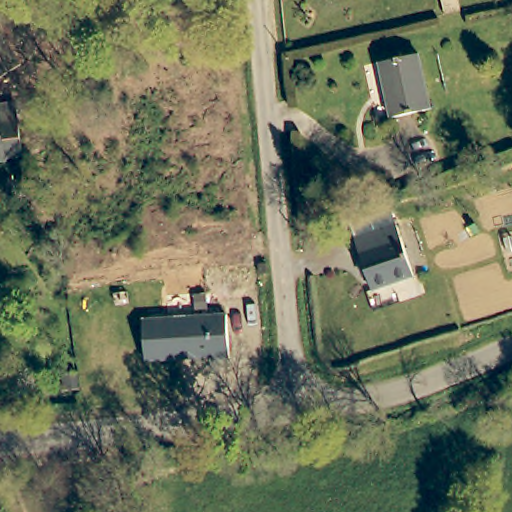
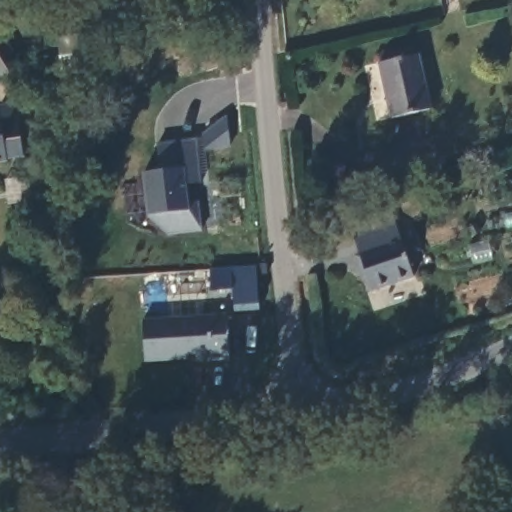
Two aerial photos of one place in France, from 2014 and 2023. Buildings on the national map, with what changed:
unchanged [(391,117),(380,63),(420,57),(431,109),(391,117)]
unchanged [(20,118),(26,154),(0,159),(0,117),(6,116),(7,120),(20,118)]
new [(198,139),(202,182),(187,183),(186,168),(163,170),(158,171),(156,143),(198,139)]
new [(170,234),(148,215),(143,173),(163,170),(186,168),(187,183),(189,203),(199,201),(202,229),(170,234)]
unchanged [(360,277),(355,262),(359,261),(354,244),(396,231),(412,283),(370,295),(364,275),(360,277)]
new [(256,265),(259,303),(233,305),(231,290),(209,291),(210,268),(256,265)]
unchanged [(224,360),(207,360),(206,358),(190,359),(190,356),(177,356),(177,359),(139,360),(137,319),(221,315),(224,360)]

